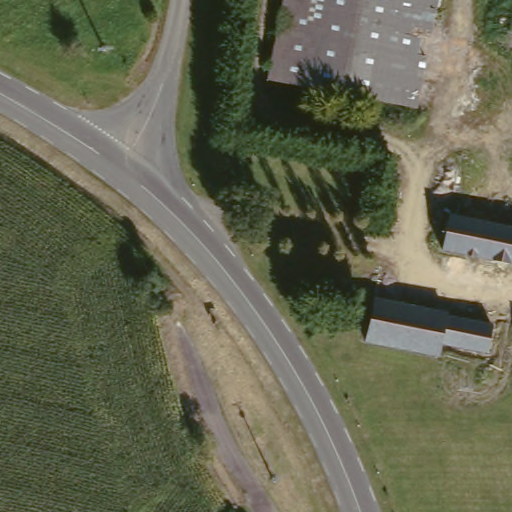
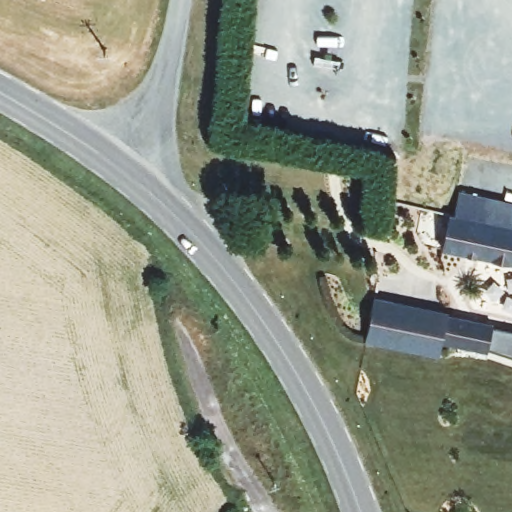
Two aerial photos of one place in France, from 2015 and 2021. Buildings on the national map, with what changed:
demolished [(266,77),(281,0),(434,0),(415,105),(266,77)]
new [(460,193),(512,204),(512,228),(455,214),(460,193)]
unchanged [(444,212),(512,228),(512,262),(437,246),(444,212)]
unchanged [(371,296),(485,323),(479,347),(440,339),(436,354),(361,338),(371,296)]
new [(487,354),(439,344),(440,339),(479,347),(485,323),(497,325),(495,329),(512,332),(512,356),(488,349),(487,354)]

